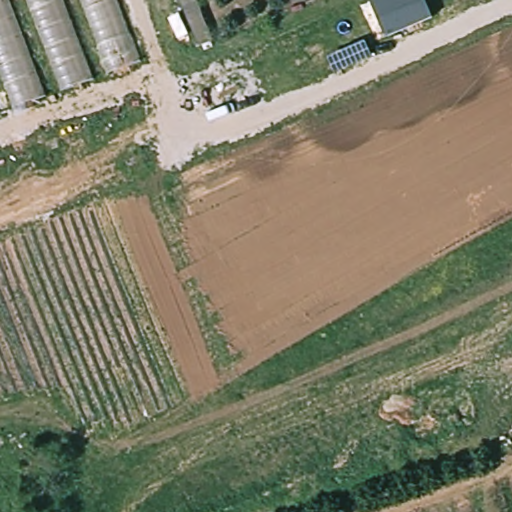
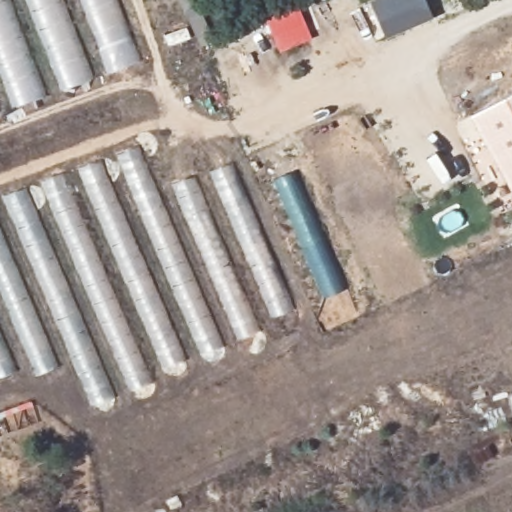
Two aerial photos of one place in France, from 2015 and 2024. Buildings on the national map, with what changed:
unchanged [(143,60),(0,112),(0,0),(119,0),(143,60)]
unchanged [(212,36),(199,43),(180,0),(198,0),(212,36)]
unchanged [(432,15),(384,35),(369,0),(426,0),(432,15)]
new [(468,117),(512,92),(512,193),(468,117)]
new [(259,332),(146,376),(151,385),(92,407),(72,359),(36,375),(31,365),(0,379),(0,197),(136,146),(158,195),(228,163),(294,309),(254,323),(259,332)]
new [(329,300),(274,180),(292,170),(345,293),(329,300)]

